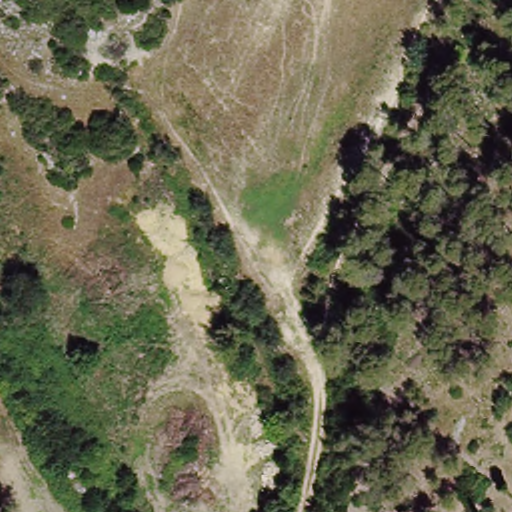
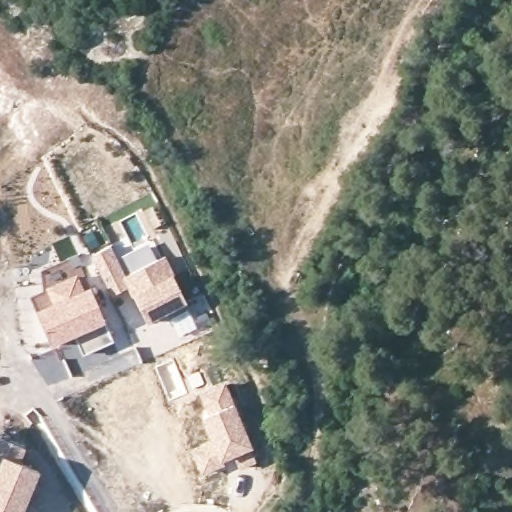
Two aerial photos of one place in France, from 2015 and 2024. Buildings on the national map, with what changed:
new [(142,314),(127,287),(114,294),(93,254),(112,245),(118,258),(148,243),(157,259),(164,255),(180,293),(186,304),(147,324),(142,314)]
new [(83,354),(75,337),(52,348),(34,309),(30,298),(44,292),(43,288),(78,273),(85,288),(89,286),(106,324),(113,341),(83,354)]
new [(56,350),(70,377),(47,386),(32,359),(56,350)]
new [(208,440),(199,417),(205,415),(197,394),(224,382),(246,431),(256,462),(234,469),(231,464),(230,464),(229,463),(201,478),(188,450),(208,440)]
new [(10,458),(15,444),(25,448),(20,462),(40,471),(23,512),(0,512),(0,459),(2,455),(10,458)]
unchanged [(70,467),(85,490),(76,496),(62,471),(70,467)]

